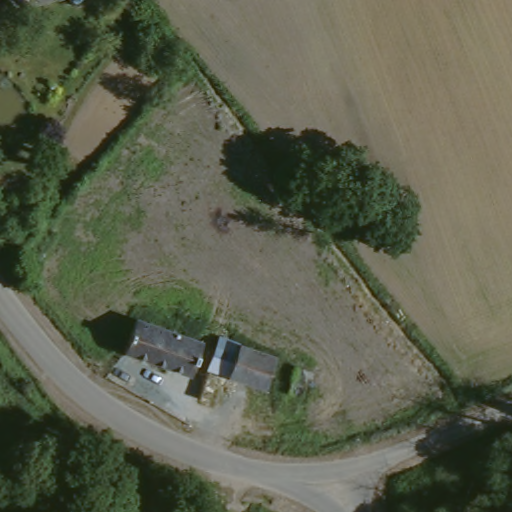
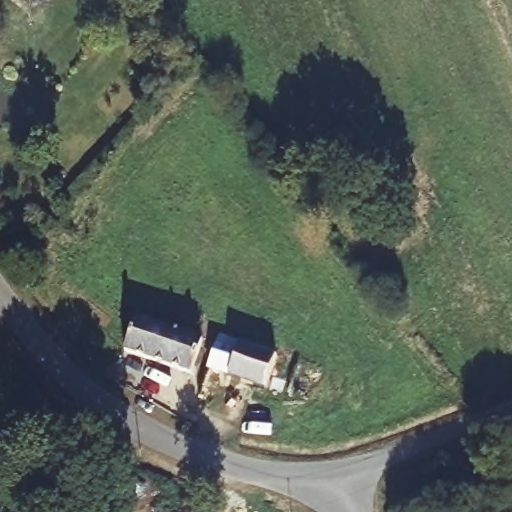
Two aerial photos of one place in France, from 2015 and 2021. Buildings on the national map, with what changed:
unchanged [(60,0),(62,0),(61,1),(60,0)]
unchanged [(189,375),(123,352),(136,317),(202,342),(189,375)]
unchanged [(227,377),(237,343),(277,357),(266,389),(227,377)]
unchanged [(212,404),(197,399),(204,375),(206,370),(222,375),(212,404)]

